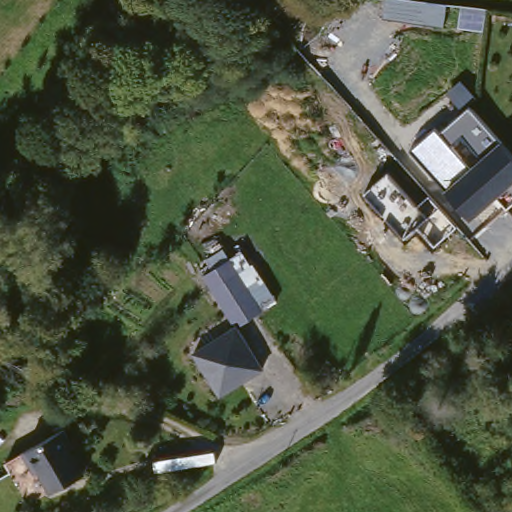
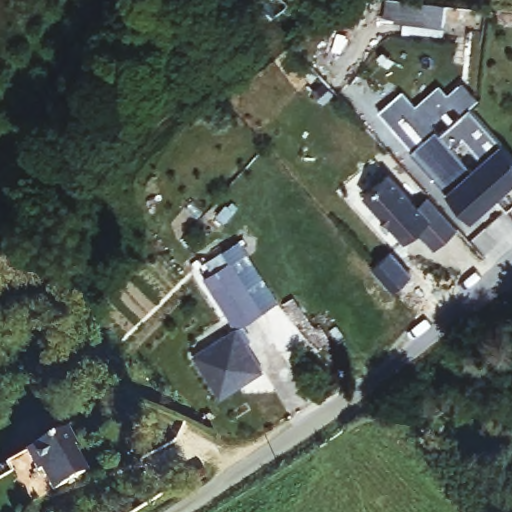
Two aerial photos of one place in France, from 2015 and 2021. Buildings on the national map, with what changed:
new [(415,103),(438,83),(447,93),(463,80),(479,100),(469,107),(461,113),(452,103),(430,122),(436,129),(412,149),(378,111),(402,89),(415,103)]
unchanged [(495,198),(469,220),(445,191),(410,151),(436,129),(440,133),(469,107),(503,144),(512,154),(512,203),(503,209),(495,198)]
unchanged [(431,246),(415,228),(403,237),(363,195),(386,173),(417,205),(428,196),(456,228),(431,246)]
unchanged [(231,258),(267,308),(241,326),(206,276),(231,258)]
unchanged [(226,391),(201,355),(241,326),(270,367),(254,379),(230,396),(226,391)]
unchanged [(64,480),(40,493),(18,452),(37,441),(77,419),(86,436),(83,438),(97,463),(64,480)]

